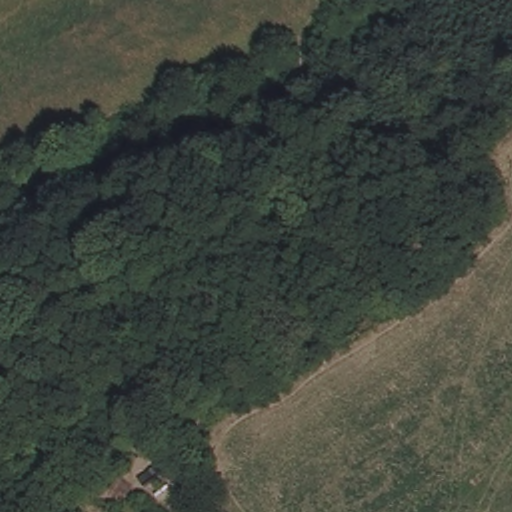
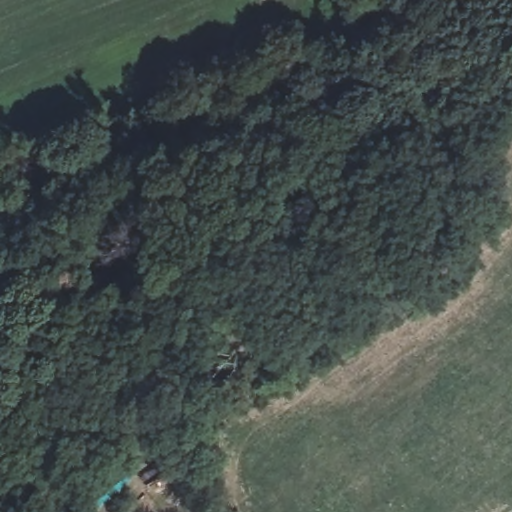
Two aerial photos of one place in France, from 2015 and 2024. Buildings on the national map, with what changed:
[]

